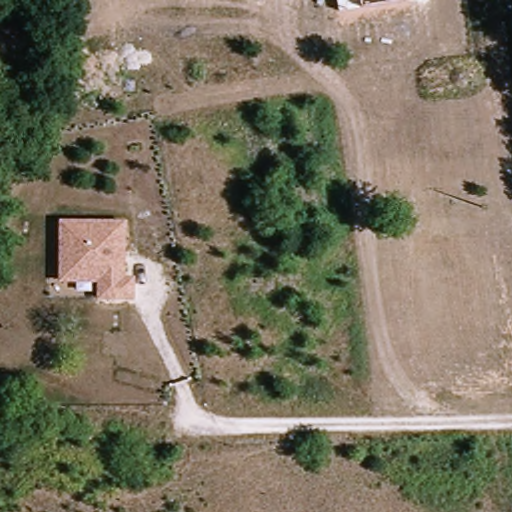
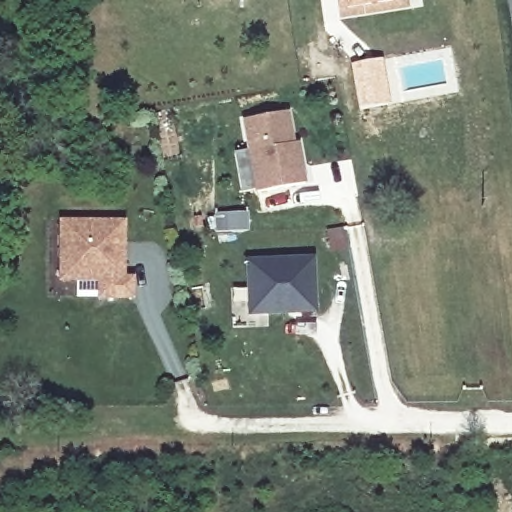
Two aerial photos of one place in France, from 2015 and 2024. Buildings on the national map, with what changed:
new [(341,20),(338,0),(408,0),(410,9),(341,20)]
new [(254,194),(241,120),(289,111),(295,144),(298,143),(306,184),(254,194)]
unchanged [(60,219),(127,220),(127,274),(135,274),(135,300),(96,299),(95,280),(60,279),(60,219)]
new [(248,318),(245,260),(315,257),(317,313),(248,318)]

